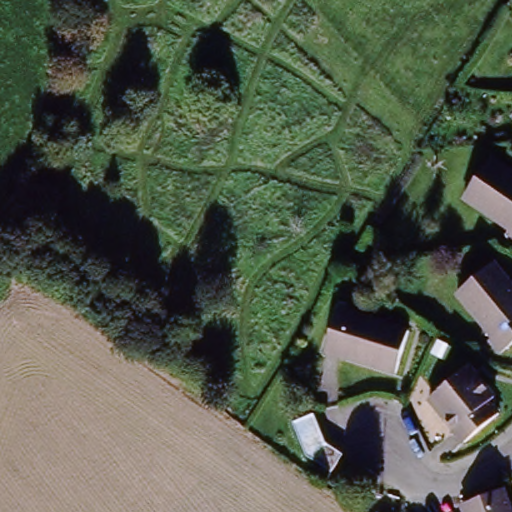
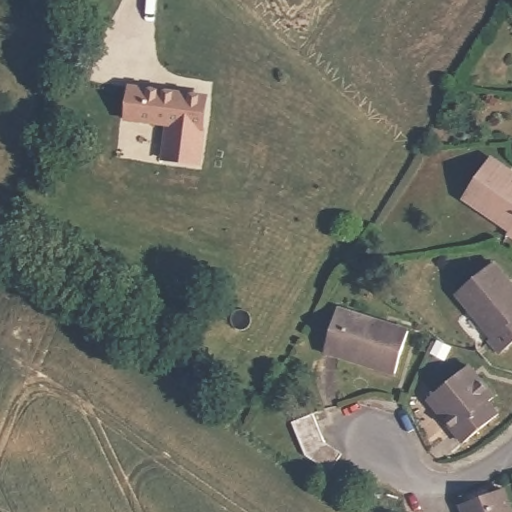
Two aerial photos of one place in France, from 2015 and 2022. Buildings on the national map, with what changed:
new [(213,98),(204,167),(164,162),(169,129),(125,121),(129,87),(213,98)]
unchanged [(504,232),(459,192),(493,155),(512,171),(512,239),(504,232)]
unchanged [(500,353),(490,340),(457,294),(498,265),(512,283),(512,343),(500,353)]
unchanged [(412,336),(394,378),(323,352),(340,309),(412,336)]
unchanged [(508,410),(464,443),(438,409),(428,397),(467,367),(477,380),(483,374),(508,410)]
unchanged [(323,439),(342,452),(332,472),(307,456),(294,420),(316,414),(323,439)]
unchanged [(512,509),(512,512),(465,512),(462,506),(505,491),(512,509)]

